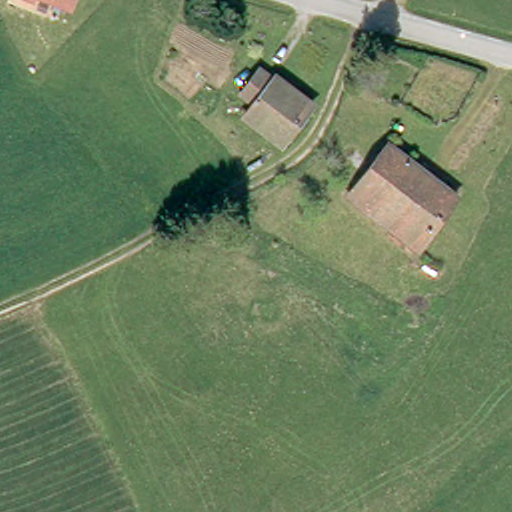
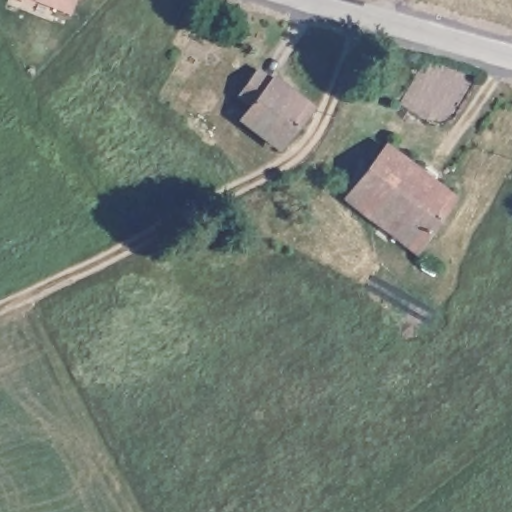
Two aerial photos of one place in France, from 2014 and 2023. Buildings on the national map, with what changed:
unchanged [(62,7),(46,0),(65,0),(62,7)]
unchanged [(258,105),(247,96),(267,69),(315,103),(285,144),(249,117),(258,105)]
unchanged [(455,195),(417,247),(348,196),(386,142),(455,195)]

